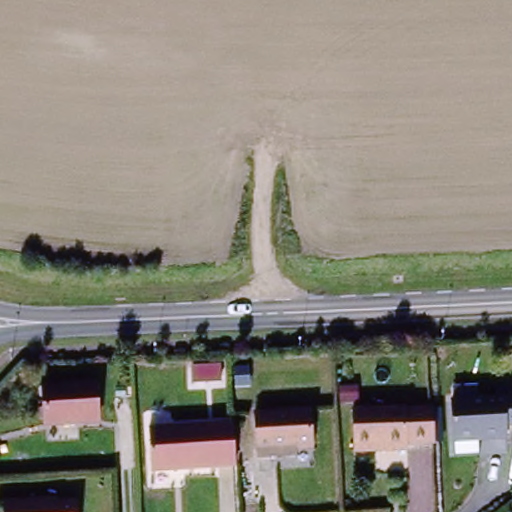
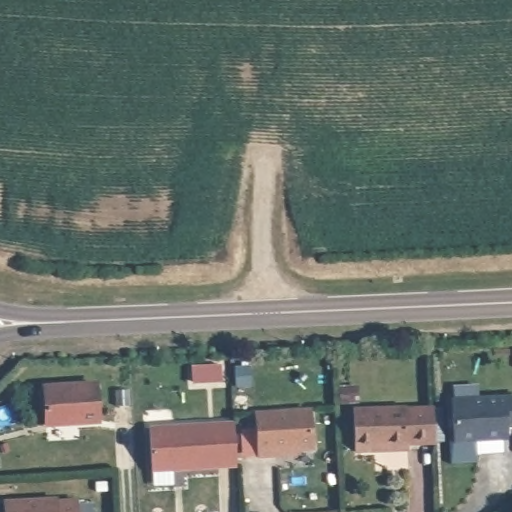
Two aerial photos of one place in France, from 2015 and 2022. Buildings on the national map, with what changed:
unchanged [(45,389),(96,387),(97,423),(47,426),(45,389)]
unchanged [(505,425),(505,438),(454,441),(453,399),(512,397),(512,425),(505,425)]
unchanged [(396,448),(371,449),(371,455),(351,456),(350,411),(430,409),(431,441),(395,442),(396,448)]
unchanged [(311,451),(290,453),(290,460),(258,461),(258,415),(310,412),(311,451)]
unchanged [(148,427),(233,425),(235,467),(150,470),(148,427)]
unchanged [(74,512),(3,512),(3,499),(55,499),(74,499),(74,512)]

